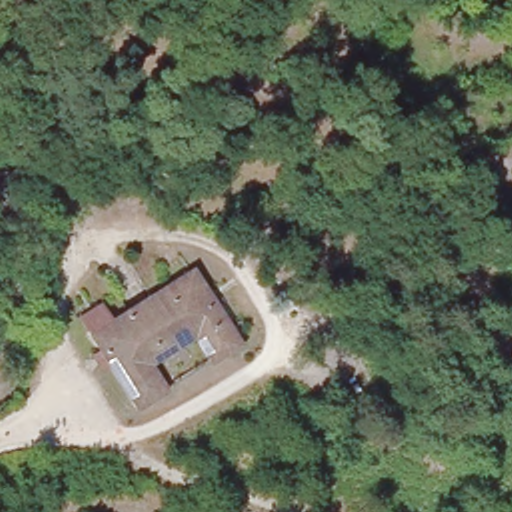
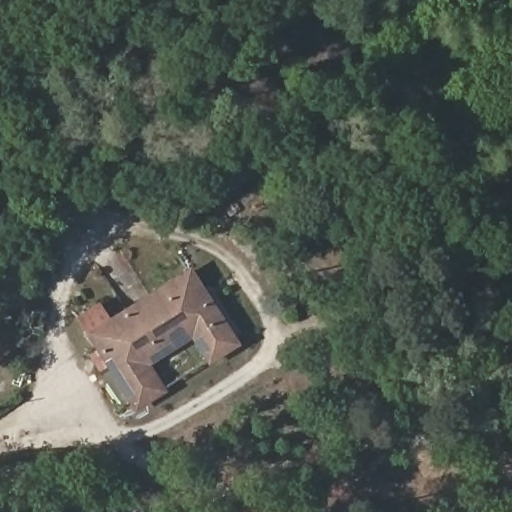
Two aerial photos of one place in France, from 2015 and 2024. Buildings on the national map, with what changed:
unchanged [(90,314),(109,303),(115,313),(188,267),(201,287),(235,342),(210,358),(190,328),(149,355),(167,385),(143,400),(90,314)]

